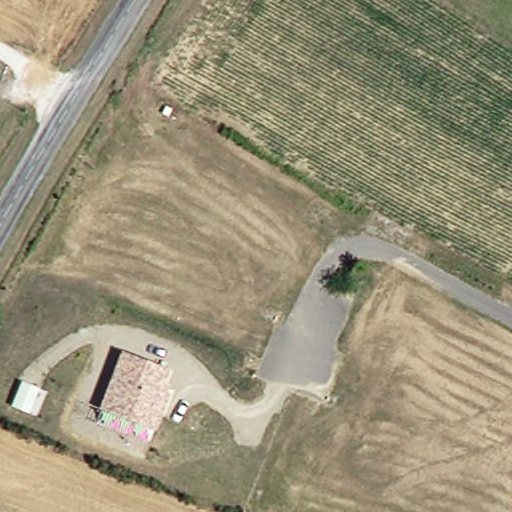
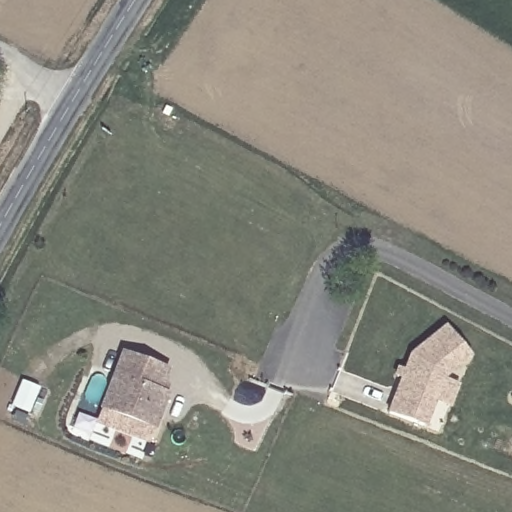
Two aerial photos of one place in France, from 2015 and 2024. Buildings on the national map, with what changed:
new [(390,414),(412,355),(447,327),(469,356),(441,379),(424,427),(390,414)]
unchanged [(172,368),(167,386),(173,387),(158,431),(101,408),(123,351),(172,368)]
new [(26,381),(42,388),(31,413),(15,407),(26,381)]

